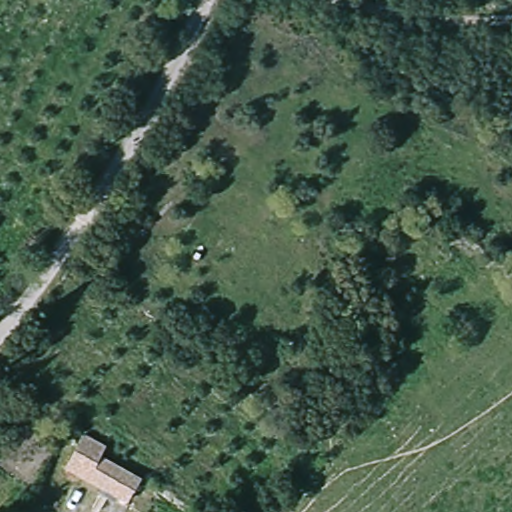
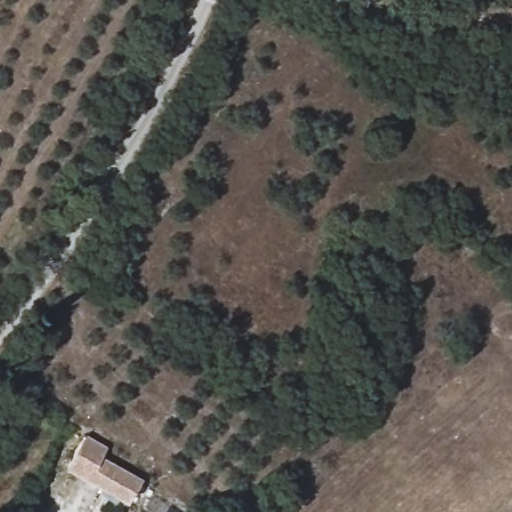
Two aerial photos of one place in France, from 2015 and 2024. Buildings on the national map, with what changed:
unchanged [(85,433),(106,447),(102,457),(142,479),(128,506),(66,470),(85,433)]

